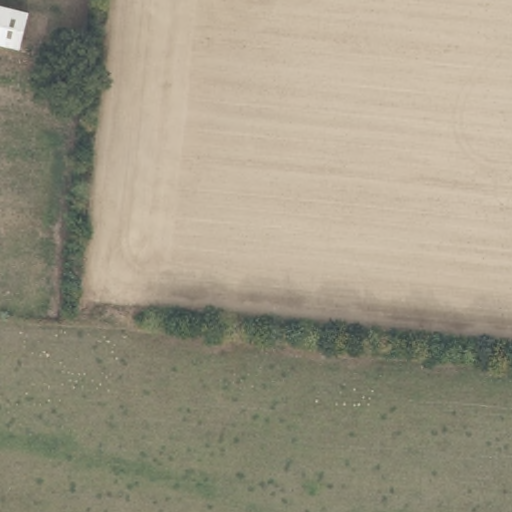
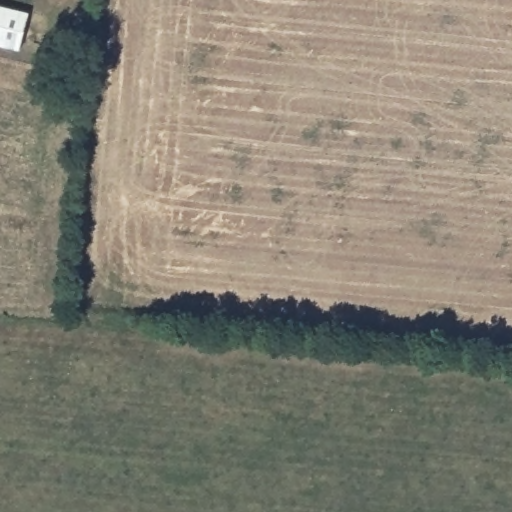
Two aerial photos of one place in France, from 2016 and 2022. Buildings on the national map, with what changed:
unchanged [(0,6),(32,14),(24,49),(0,43),(0,6)]

